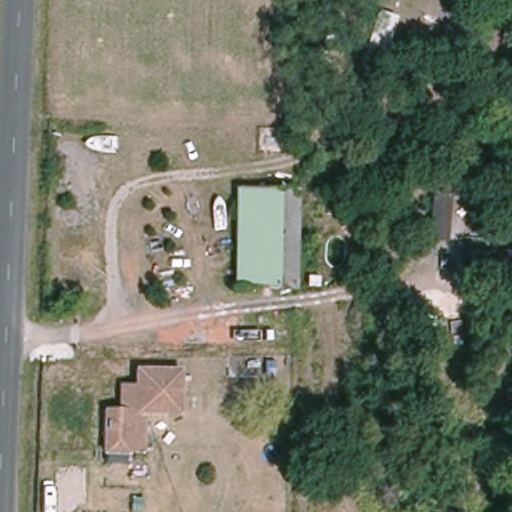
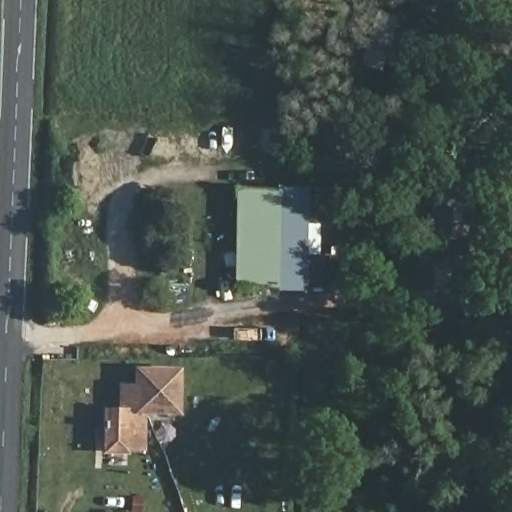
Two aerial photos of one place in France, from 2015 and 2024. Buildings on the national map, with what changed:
unchanged [(446,260),(446,238),(428,237),(431,181),(452,181),(447,217),(468,217),(466,260),(446,260)]
unchanged [(237,278),(240,186),(296,188),(292,280),(237,278)]
unchanged [(142,412),(139,449),(100,445),(104,407),(117,409),(120,382),(134,384),(136,367),(179,372),(174,415),(142,412)]

